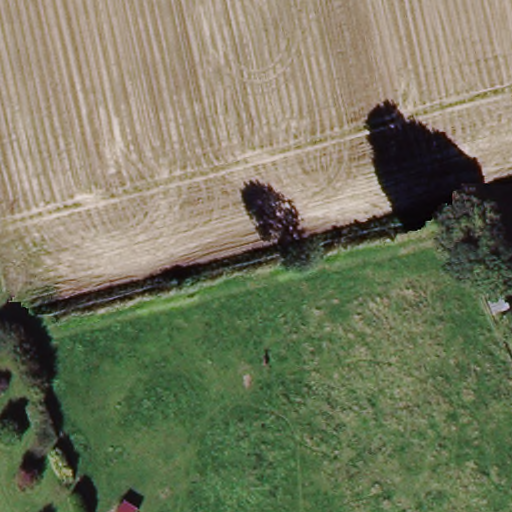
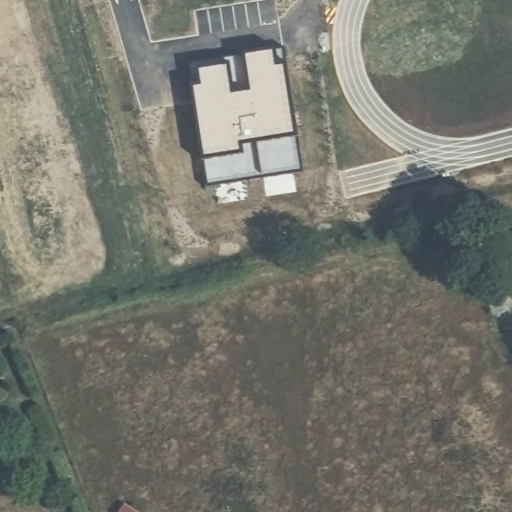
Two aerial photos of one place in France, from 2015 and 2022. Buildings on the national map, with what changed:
new [(192,70),(283,52),(302,180),(211,196),(192,70)]

